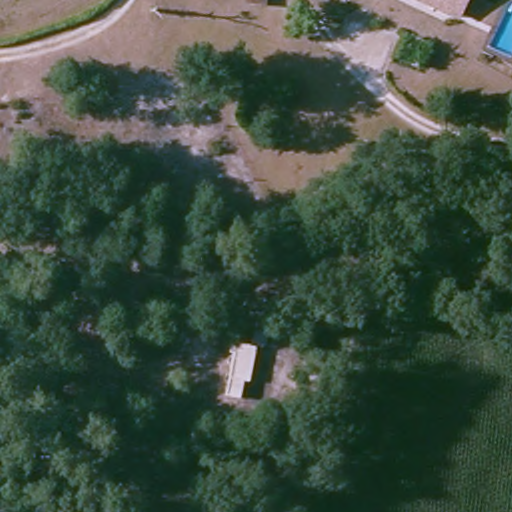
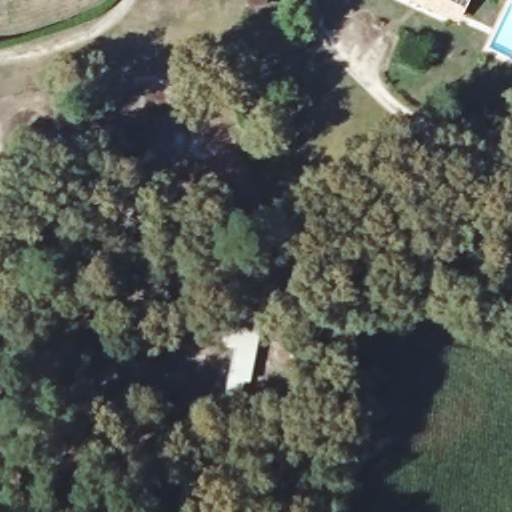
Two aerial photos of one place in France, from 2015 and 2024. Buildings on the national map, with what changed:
unchanged [(457,9),(441,0),(461,0),(457,9)]
unchanged [(437,122),(424,114),(437,90),(451,98),(437,122)]

